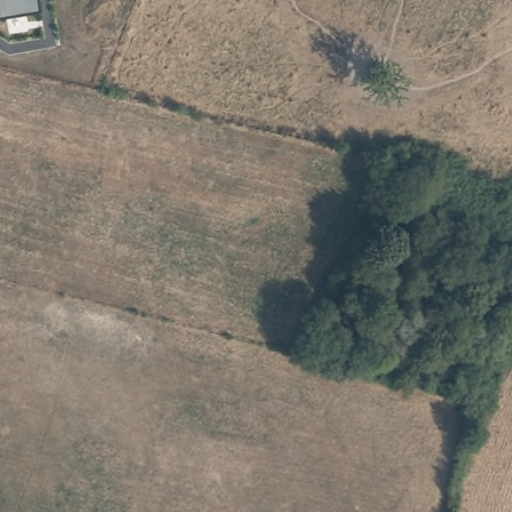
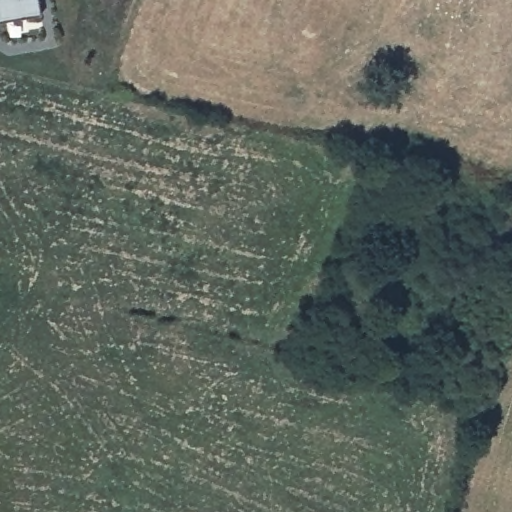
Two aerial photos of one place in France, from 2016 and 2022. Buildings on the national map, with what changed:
unchanged [(40,12),(0,19),(0,0),(38,0),(40,12)]

